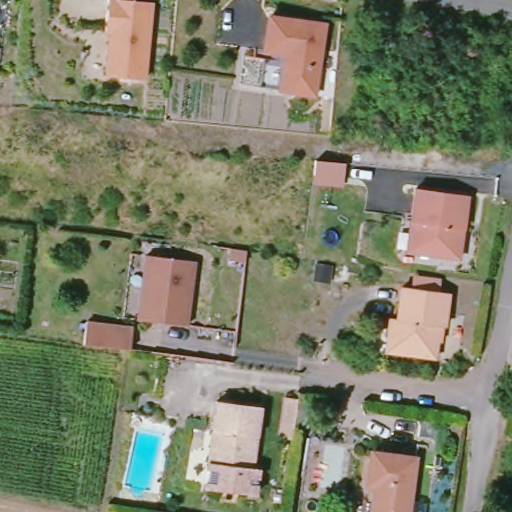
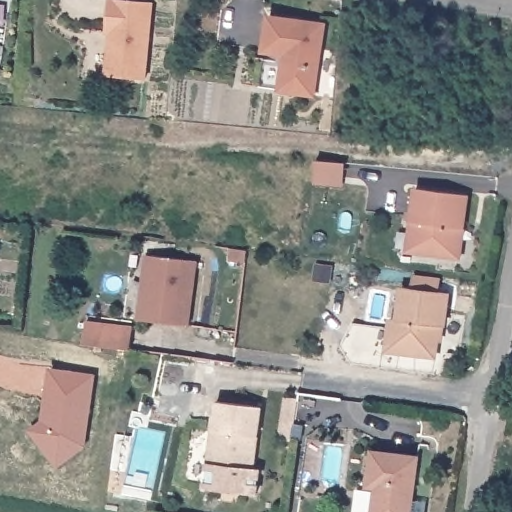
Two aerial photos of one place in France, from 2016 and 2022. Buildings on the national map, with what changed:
unchanged [(150,3),(143,80),(104,76),(108,33),(103,32),(106,0),(117,0),(150,3)]
unchanged [(315,81),(280,76),(285,40),(264,36),(267,17),(323,26),(315,81)]
unchanged [(338,181),(310,179),(311,164),(340,166),(338,181)]
unchanged [(409,225),(414,192),(465,199),(457,262),(415,256),(405,255),(409,225)]
unchanged [(194,258),(185,324),(133,317),(136,291),(142,291),(145,271),(139,269),(142,250),(194,258)]
unchanged [(249,252),(246,271),(227,268),(228,250),(249,252)]
unchanged [(385,333),(388,312),(395,313),(399,283),(412,285),(414,273),(438,277),(437,290),(449,291),(444,326),(439,325),(434,357),(398,351),(382,349),(385,333)]
unchanged [(128,325),(125,347),(121,346),(78,340),(81,319),(128,325)]
new [(40,421),(48,371),(91,378),(81,448),(58,471),(36,449),(27,441),(39,429),(40,421)]
unchanged [(290,441),(272,438),(278,397),(296,400),(290,441)]
unchanged [(260,407),(253,470),(260,470),(257,496),(205,490),(208,465),(205,464),(212,400),(260,407)]
unchanged [(371,512),(375,488),(365,487),(371,450),(417,458),(410,505),(422,507),(421,512),(371,512)]

